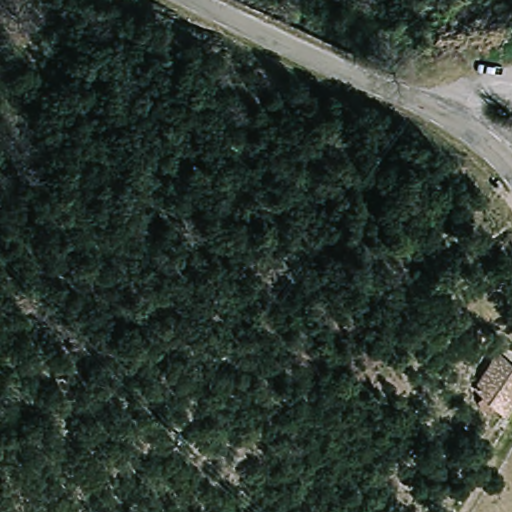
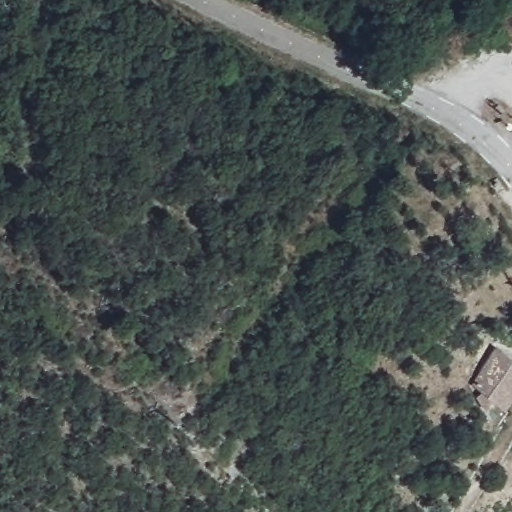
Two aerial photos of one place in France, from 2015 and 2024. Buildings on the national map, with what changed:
unchanged [(512,359),(512,395),(504,406),(471,386),(497,350),(512,359)]

